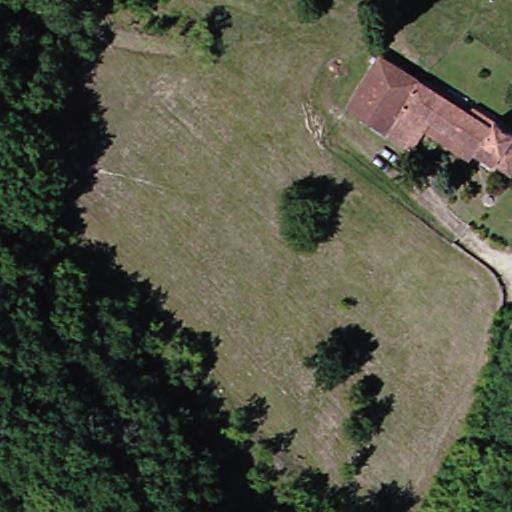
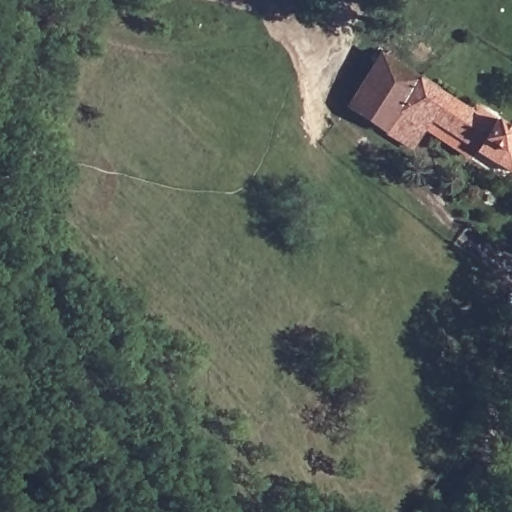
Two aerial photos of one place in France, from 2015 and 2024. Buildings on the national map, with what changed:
unchanged [(433,131),(422,148),(356,112),(392,55),(502,123),(507,115),(512,118),(512,164),(484,147),(478,158),(433,131)]

